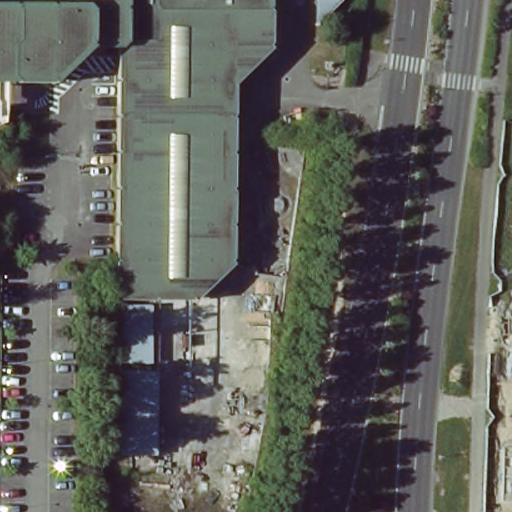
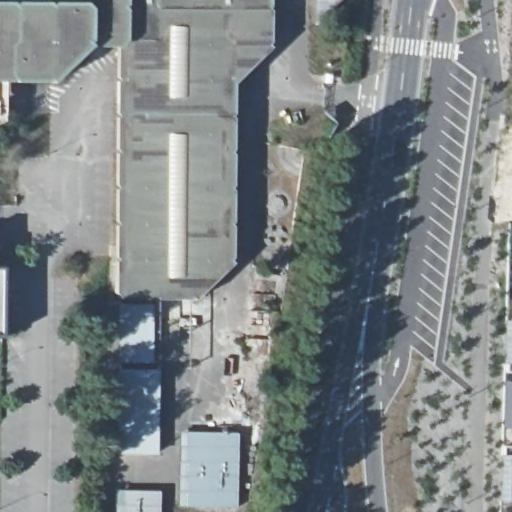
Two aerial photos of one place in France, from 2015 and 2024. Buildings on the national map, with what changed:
unchanged [(264,3),(269,7),(265,11),(264,39),(269,43),(230,82),(229,110),(233,114),(229,118),(229,147),(232,150),(229,153),(229,182),(233,186),(229,190),(228,218),(233,222),(228,226),(228,255),(232,259),(196,295),(192,291),(164,291),(159,295),(155,290),(129,290),(124,295),(120,290),(120,267),(124,264),(119,259),(119,226),(123,223),(120,219),(120,189),(123,187),(120,183),(120,153),(123,150),(121,147),(120,117),(123,115),(119,113),(120,81),(124,79),(120,75),(120,46),(124,44),(121,40),(89,39),(48,79),(46,77),(16,76),(13,79),(10,76),(0,76),(0,0),(264,0),(264,3)]
unchanged [(316,23),(313,22),(313,0),(339,0),(316,23)]
new [(0,233),(1,261),(13,261),(11,331),(0,331),(0,233)]
unchanged [(153,305),(154,359),(124,359),(125,304),(153,305)]
new [(507,321),(512,321),(512,363),(506,363),(507,321)]
unchanged [(161,372),(161,458),(121,459),(122,372),(161,372)]
new [(505,385),(512,385),(512,426),(505,425),(505,385)]
new [(239,434),(237,509),(177,508),(180,432),(239,434)]
new [(502,456),(512,456),(512,501),(501,500),(502,456)]
new [(161,512),(117,512),(118,491),(161,493),(161,512)]

